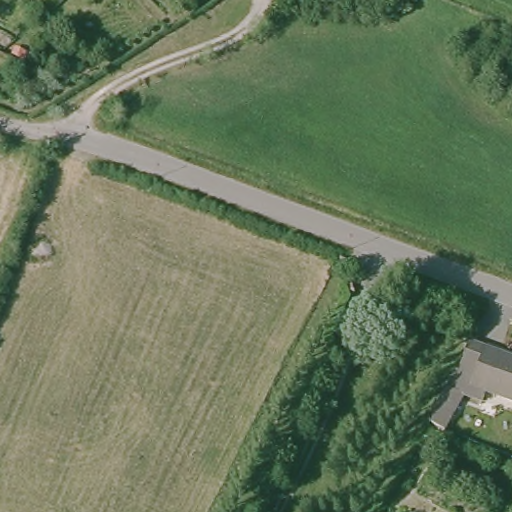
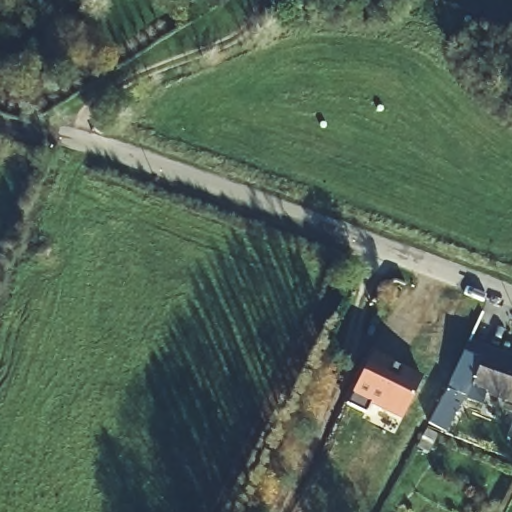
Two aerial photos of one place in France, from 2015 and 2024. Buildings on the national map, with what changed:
unchanged [(474,402),(444,392),(471,340),(512,355),(512,400),(479,388),(474,402)]
new [(402,420),(369,403),(364,412),(349,405),(353,394),(351,393),(373,351),(424,377),(402,420)]
new [(464,399),(448,431),(441,428),(429,451),(418,447),(444,392),(464,399)]

